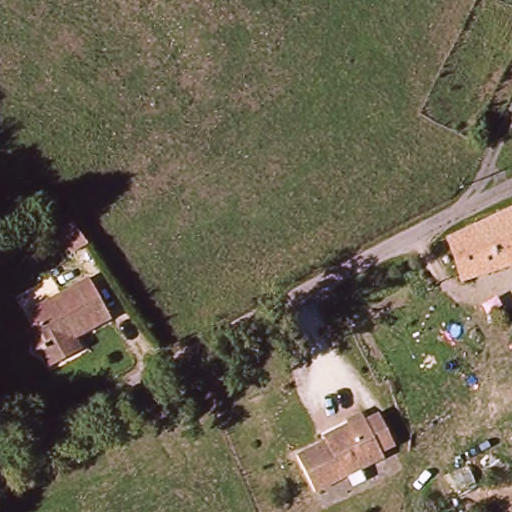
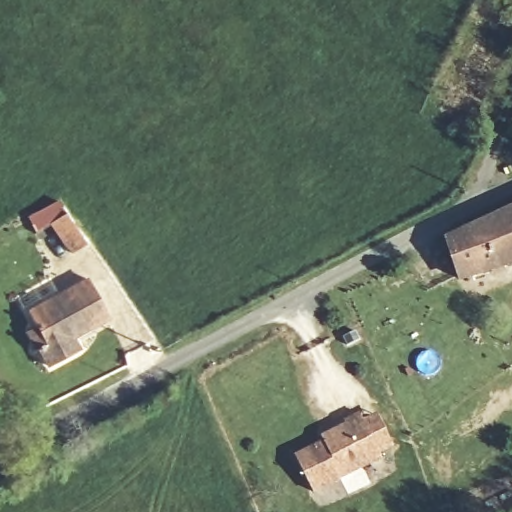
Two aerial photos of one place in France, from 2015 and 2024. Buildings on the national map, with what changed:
unchanged [(460,274),(442,241),(512,207),(512,260),(460,274)]
unchanged [(69,256),(50,223),(63,214),(77,234),(84,245),(69,256)]
unchanged [(27,313),(89,274),(118,325),(95,339),(82,347),(92,363),(65,378),(46,347),(35,352),(24,335),(35,329),(27,313)]
unchanged [(314,490),(295,454),(324,439),(321,435),(333,429),(345,422),(344,419),(359,411),(363,419),(377,412),(390,439),(377,445),(382,454),(314,490)]

